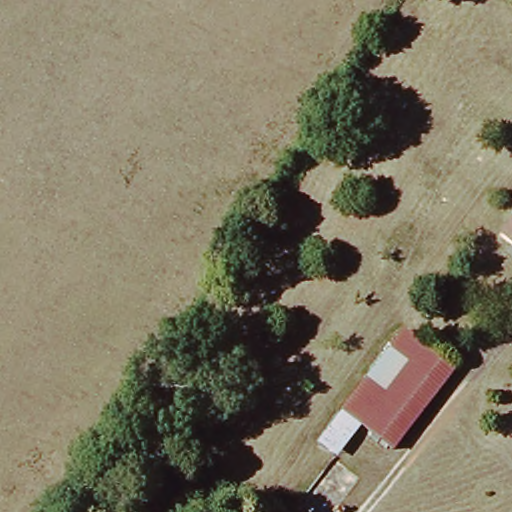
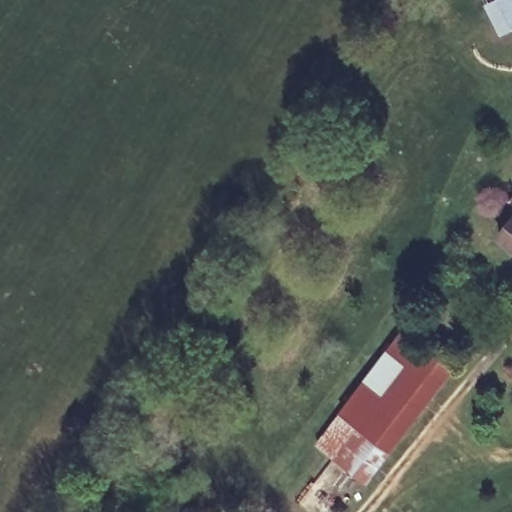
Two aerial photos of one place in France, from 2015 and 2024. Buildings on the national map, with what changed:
new [(484,0),(512,0),(512,31),(497,39),(482,5),(485,2),(484,0)]
unchanged [(512,207),(512,246),(493,232),(512,207)]
unchanged [(358,425),(340,411),(397,331),(437,361),(445,366),(387,447),(382,443),(358,425)]
unchanged [(340,411),(358,425),(331,458),(312,442),(340,411)]

